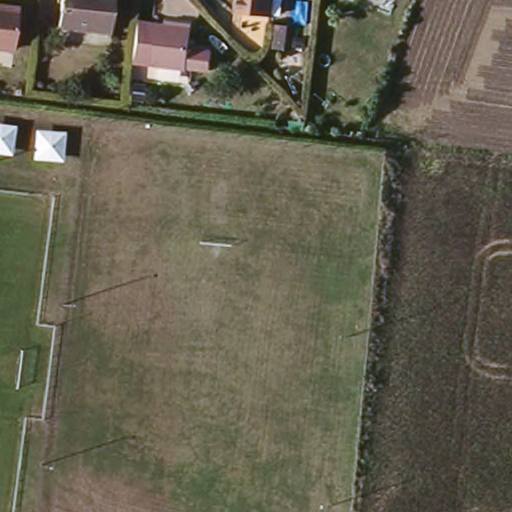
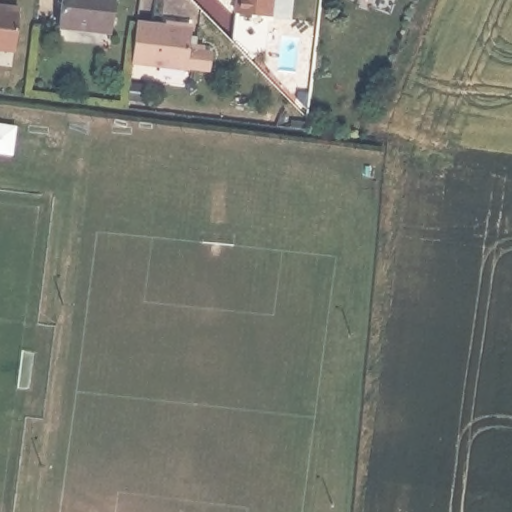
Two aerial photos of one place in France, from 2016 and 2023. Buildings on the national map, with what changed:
unchanged [(108,0),(105,30),(53,24),(56,0),(108,0)]
unchanged [(272,0),(271,12),(270,12),(267,42),(259,48),(250,44),(233,32),(237,0),(272,0)]
unchanged [(13,52),(0,50),(0,7),(18,10),(13,52)]
unchanged [(135,24),(190,30),(188,50),(210,53),(208,72),(185,70),(185,71),(130,64),(135,24)]

